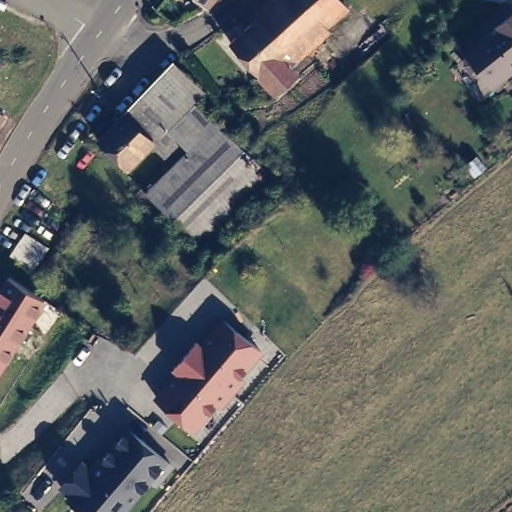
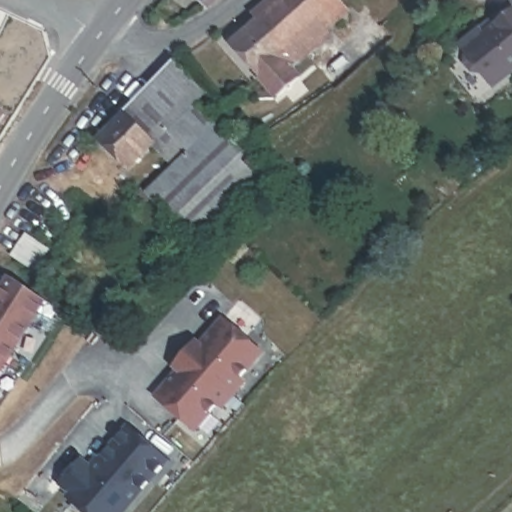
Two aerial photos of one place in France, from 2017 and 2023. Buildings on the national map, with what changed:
unchanged [(189,0),(213,0),(201,12),(189,0)]
unchanged [(233,34),(272,0),(348,0),(348,1),(330,17),(336,25),(297,59),(303,66),(278,87),(233,34)]
unchanged [(480,25),(486,32),(499,18),(505,27),(512,21),(512,69),(492,87),(459,40),(480,25)]
unchanged [(175,60),(205,90),(196,100),(209,112),(165,159),(150,145),(123,111),(175,60)]
unchanged [(0,126),(0,108),(8,114),(0,126)]
unchanged [(150,145),(127,167),(97,137),(123,111),(150,145)]
unchanged [(272,179),(202,247),(147,193),(172,165),(165,159),(209,112),(272,179)]
unchanged [(0,382),(0,306),(17,280),(52,302),(0,382)]
unchanged [(265,352),(242,377),(245,382),(222,410),(217,407),(197,432),(153,397),(176,371),(172,367),(197,337),(202,341),(221,317),(265,352)]
unchanged [(175,464),(156,486),(150,482),(126,512),(85,512),(56,487),(84,456),(95,466),(127,426),(175,464)]

